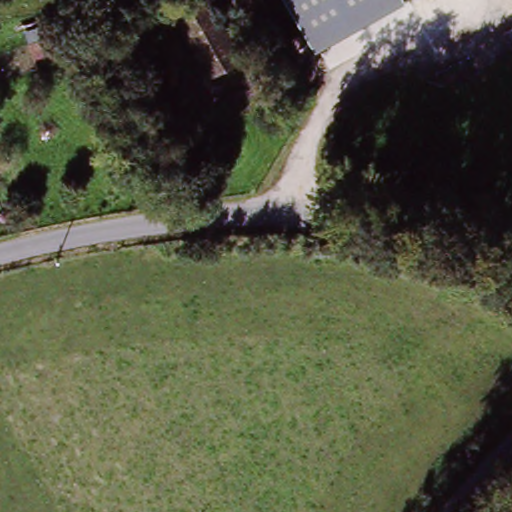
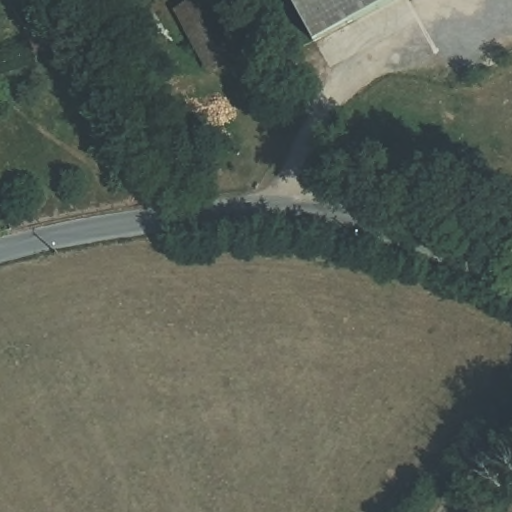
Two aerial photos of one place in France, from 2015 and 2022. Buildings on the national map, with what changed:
unchanged [(199,65),(170,13),(191,0),(209,0),(235,47),(199,65)]
unchanged [(312,48),(288,0),(397,0),(312,48)]

